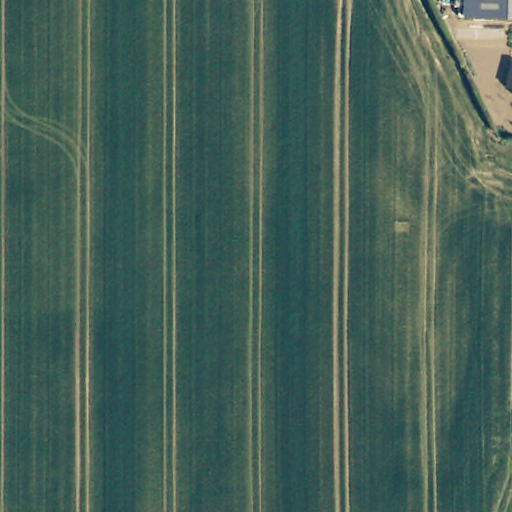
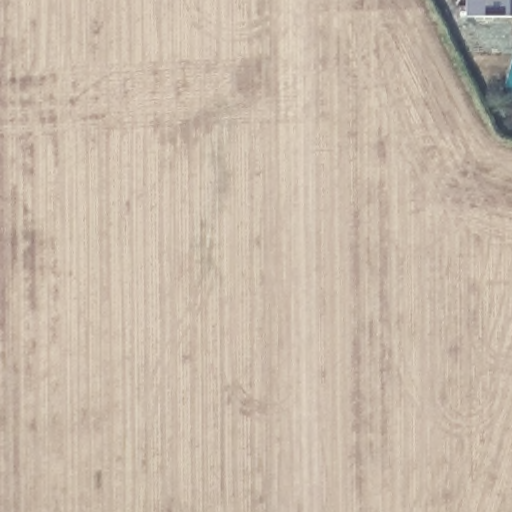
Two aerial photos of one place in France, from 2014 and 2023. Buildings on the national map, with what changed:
unchanged [(468,19),(468,0),(512,0),(512,19),(468,19)]

